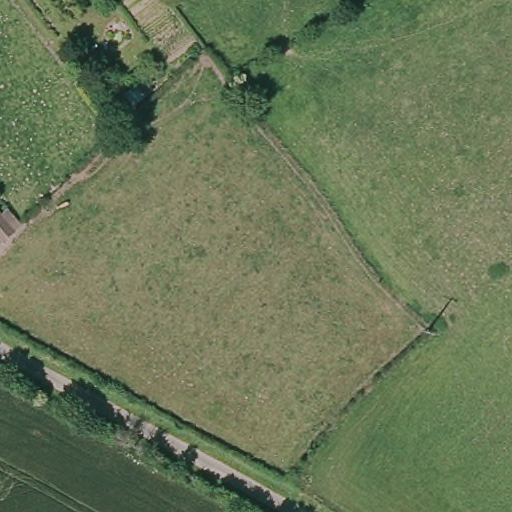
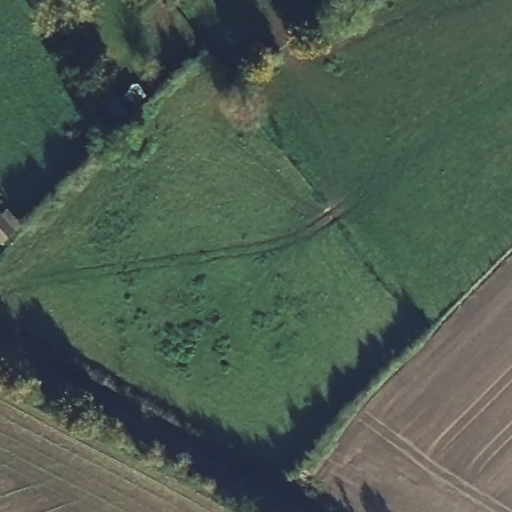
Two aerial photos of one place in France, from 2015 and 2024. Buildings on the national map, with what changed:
unchanged [(32,235),(25,241),(12,253),(0,240),(0,211),(12,224),(17,218),(32,235)]

